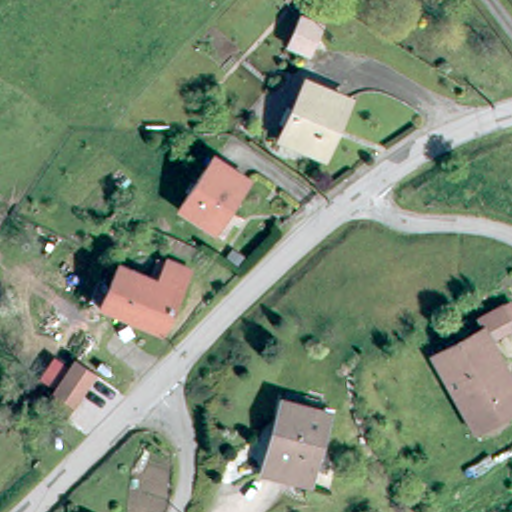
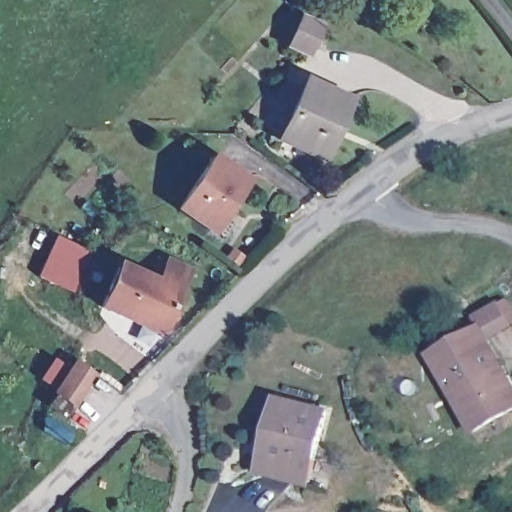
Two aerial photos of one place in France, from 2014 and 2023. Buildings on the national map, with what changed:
unchanged [(326,28),(315,57),(296,49),(307,21),(326,28)]
unchanged [(349,92),(324,150),(283,132),(307,75),(349,92)]
unchanged [(253,182),(234,212),(228,210),(214,231),(182,211),(218,159),(253,182)]
new [(93,252),(75,293),(38,276),(57,236),(93,252)]
unchanged [(163,259),(187,269),(160,335),(96,307),(116,262),(155,277),(163,259)]
unchanged [(493,302),(505,323),(481,337),(512,393),(512,404),(464,428),(423,351),(474,323),(469,315),(493,302)]
unchanged [(97,378),(75,410),(57,398),(79,366),(97,378)]
unchanged [(265,460),(279,418),(272,416),(279,395),(327,411),(305,481),(282,474),(263,467),(265,460)]

